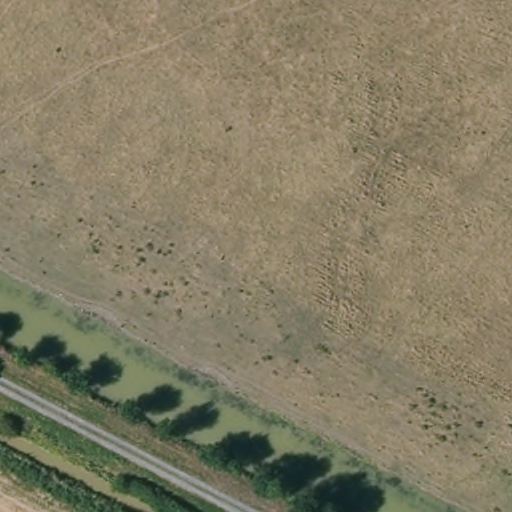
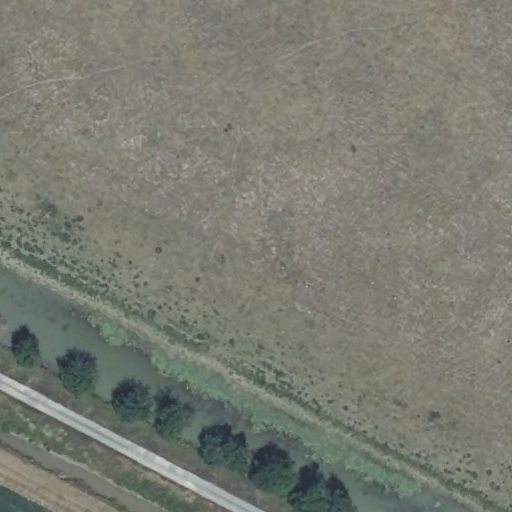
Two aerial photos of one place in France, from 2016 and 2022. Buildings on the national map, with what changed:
[]

